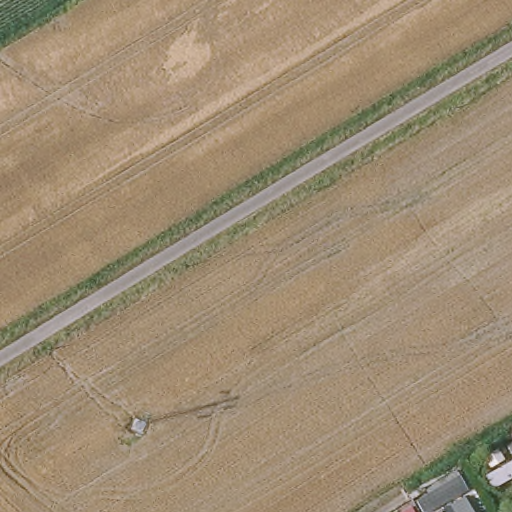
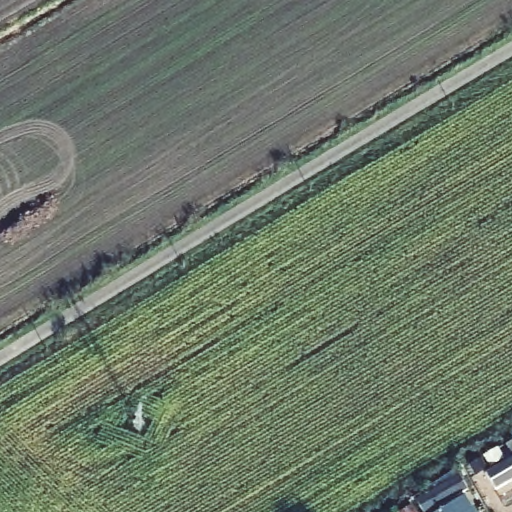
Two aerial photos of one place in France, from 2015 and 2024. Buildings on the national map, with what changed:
unchanged [(512,476),(493,487),(483,473),(512,456),(512,476)]
unchanged [(414,501),(458,475),(467,489),(427,512),(422,512),(414,501)]
unchanged [(464,497),(473,512),(437,512),(464,497)]

